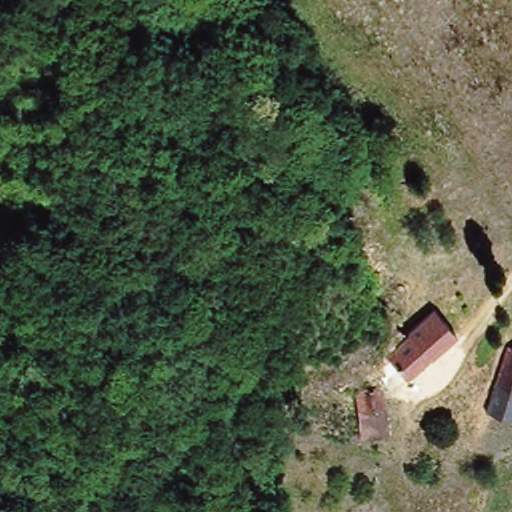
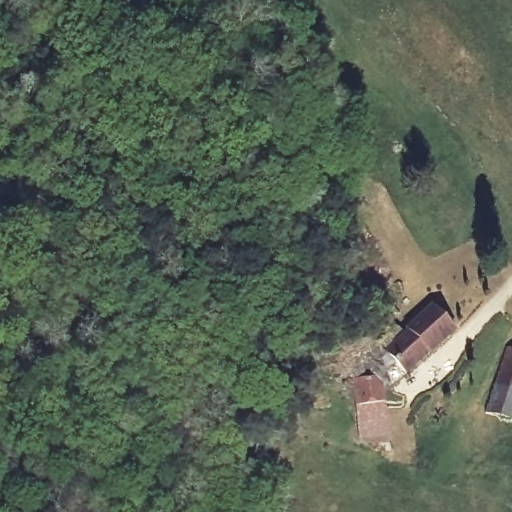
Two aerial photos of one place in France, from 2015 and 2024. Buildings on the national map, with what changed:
unchanged [(425,366),(400,343),(447,292),(469,315),(425,366)]
unchanged [(485,411),(510,344),(512,345),(512,457),(510,464),(476,458),(485,411)]
unchanged [(378,450),(350,385),(382,371),(410,437),(378,450)]

